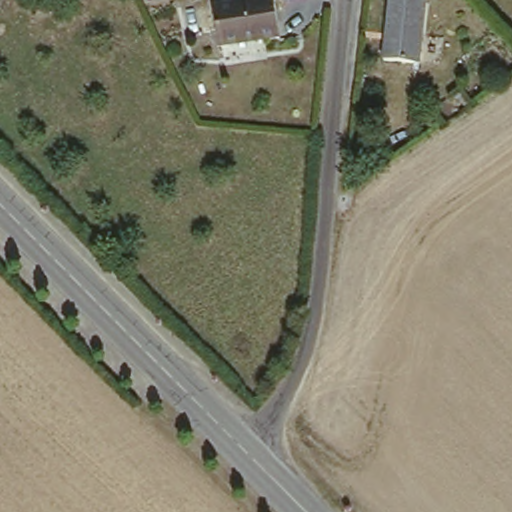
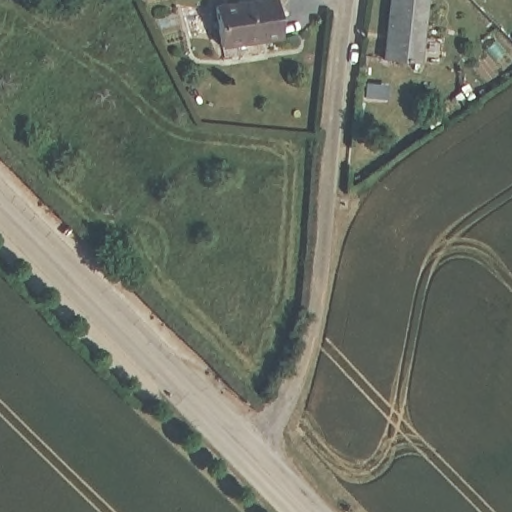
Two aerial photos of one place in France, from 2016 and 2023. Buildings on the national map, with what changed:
unchanged [(257,0),(273,0),(280,38),(221,46),(215,5),(257,0)]
unchanged [(422,62),(386,60),(391,0),(428,0),(422,62)]

